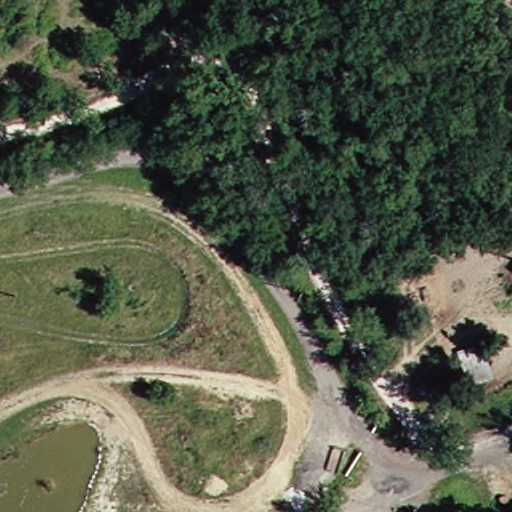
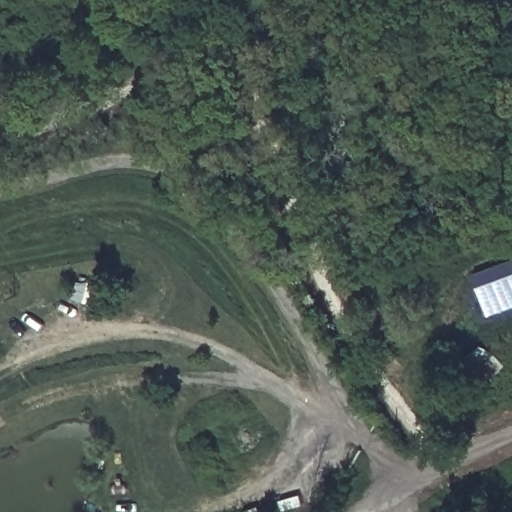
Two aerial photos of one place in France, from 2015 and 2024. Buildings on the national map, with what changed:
new [(491,317),(475,276),(512,263),(512,309),(491,317)]

